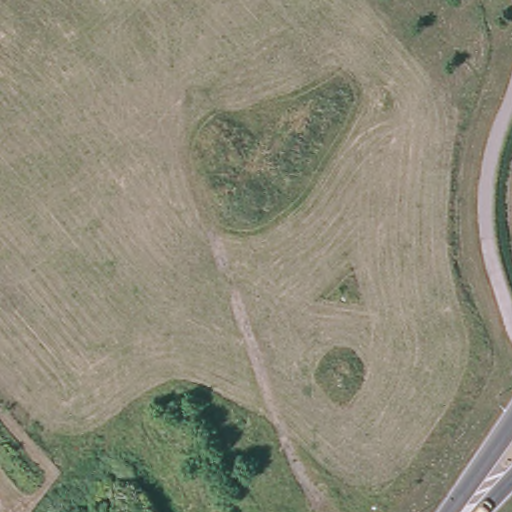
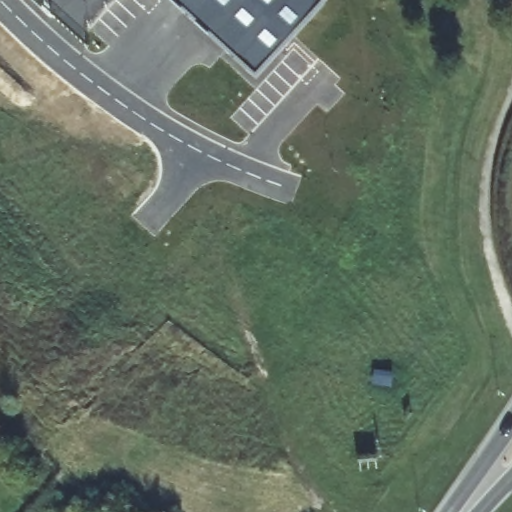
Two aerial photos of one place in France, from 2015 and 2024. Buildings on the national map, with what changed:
new [(170,0),(318,0),(322,4),(255,77),(170,0)]

